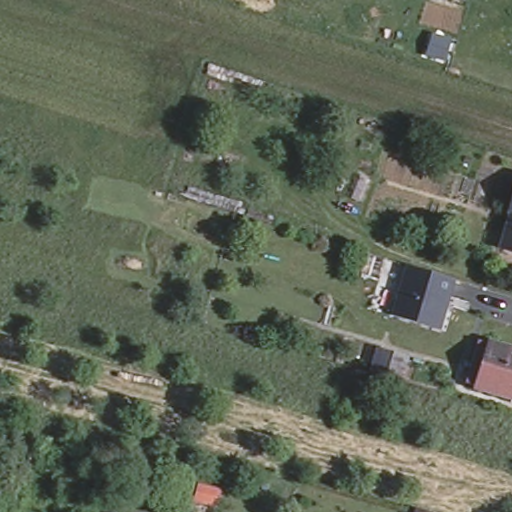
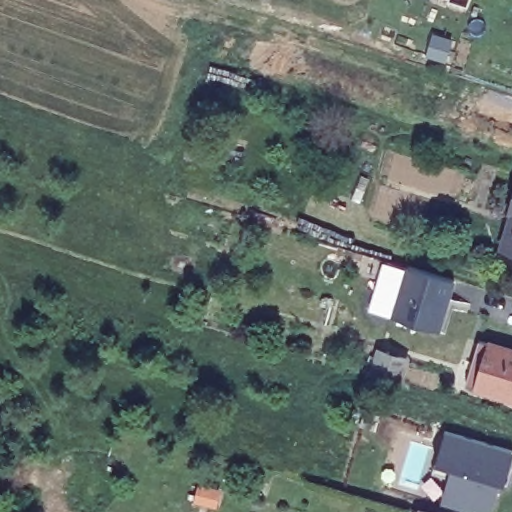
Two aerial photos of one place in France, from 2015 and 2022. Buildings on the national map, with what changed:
unchanged [(512,206),(512,211),(511,211),(512,206)]
unchanged [(512,219),(512,250),(502,247),(512,219)]
unchanged [(438,329),(393,316),(398,300),(408,265),(454,279),(448,298),(455,300),(449,316),(444,331),(438,329)]
unchanged [(477,369),(485,342),(496,345),(512,349),(512,395),(483,387),(473,384),(477,369)]
unchanged [(381,354),(407,361),(400,382),(373,374),(381,354)]
new [(512,452),(503,492),(496,490),(491,512),(459,512),(441,507),(448,476),(435,470),(444,433),(512,452)]
unchanged [(416,509),(426,512),(415,512),(416,509)]

